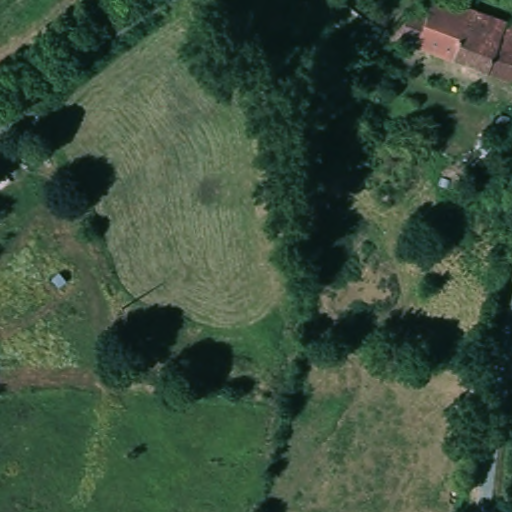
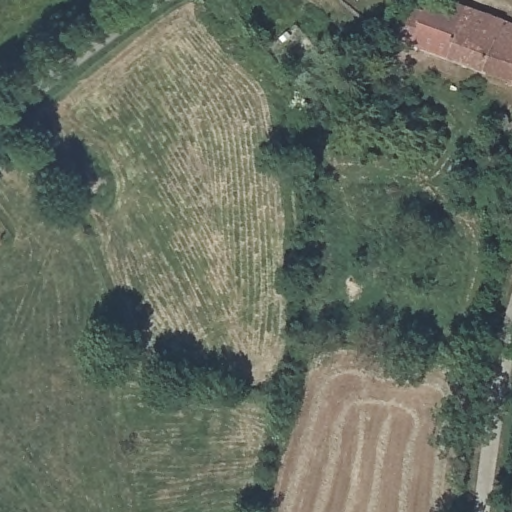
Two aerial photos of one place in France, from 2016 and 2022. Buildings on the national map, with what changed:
unchanged [(442,58),(391,37),(405,6),(407,0),(455,0),(498,19),(512,24),(512,86),(495,79),(442,58)]

